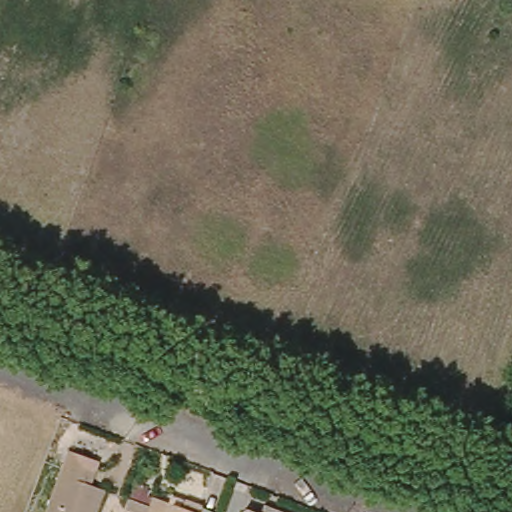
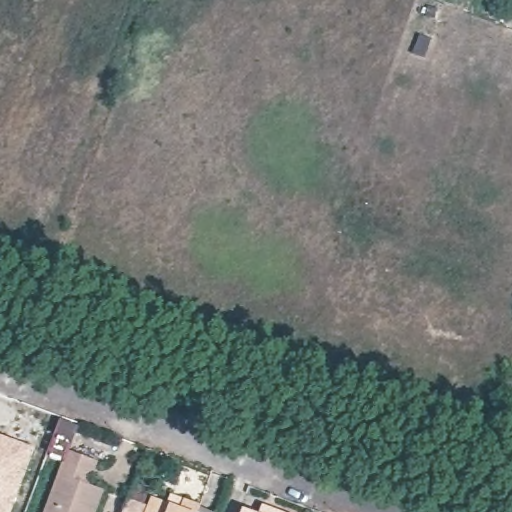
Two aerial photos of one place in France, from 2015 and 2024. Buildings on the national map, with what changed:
new [(34,447),(10,512),(0,512),(0,434),(34,447)]
unchanged [(100,461),(91,485),(105,490),(97,512),(45,512),(68,450),(100,461)]
unchanged [(183,500),(201,506),(198,512),(122,512),(127,502),(146,509),(150,497),(180,508),(183,500)]
unchanged [(219,512),(198,512),(201,506),(219,512)]
unchanged [(262,511),(264,512),(261,512),(262,511)]

